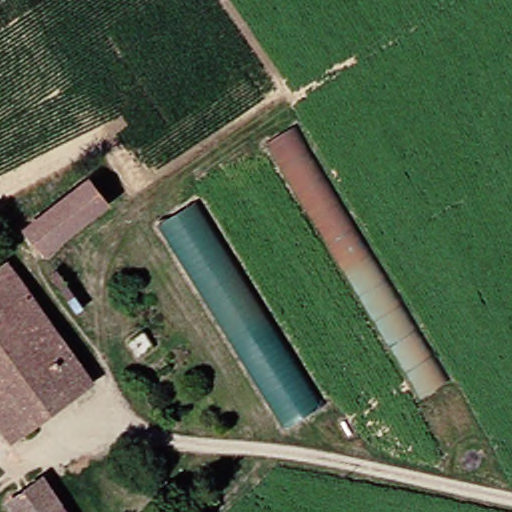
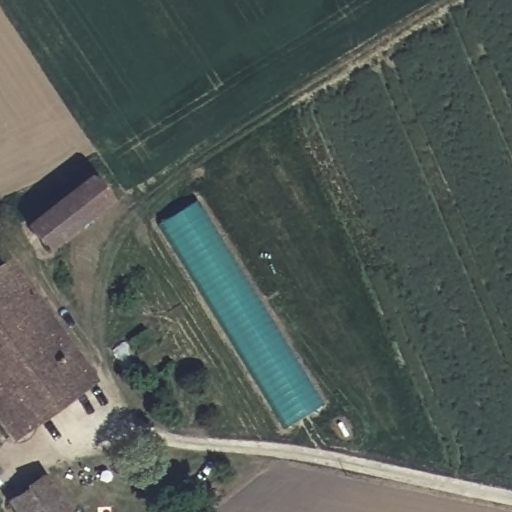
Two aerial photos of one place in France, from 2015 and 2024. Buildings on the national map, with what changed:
demolished [(423,392),(268,140),(298,123),(452,374),(423,392)]
unchanged [(28,221),(92,173),(109,195),(113,200),(85,221),(48,249),(42,241),(28,221)]
unchanged [(165,219),(201,199),(327,402),(292,422),(165,219)]
unchanged [(0,420),(0,266),(13,258),(18,265),(98,380),(10,435),(0,420)]
unchanged [(157,344),(136,359),(130,362),(121,348),(148,331),(157,344)]
unchanged [(18,512),(9,498),(43,476),(68,512),(18,512)]

